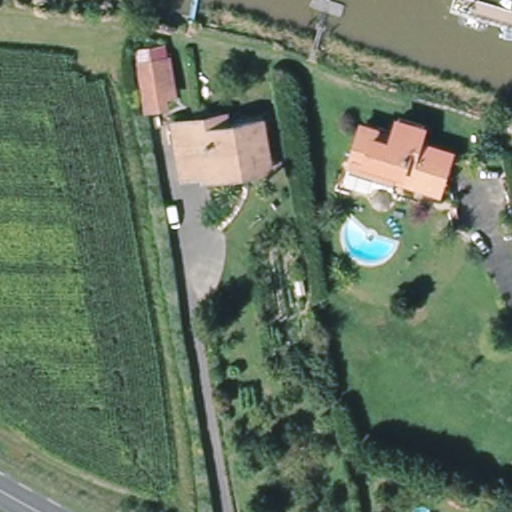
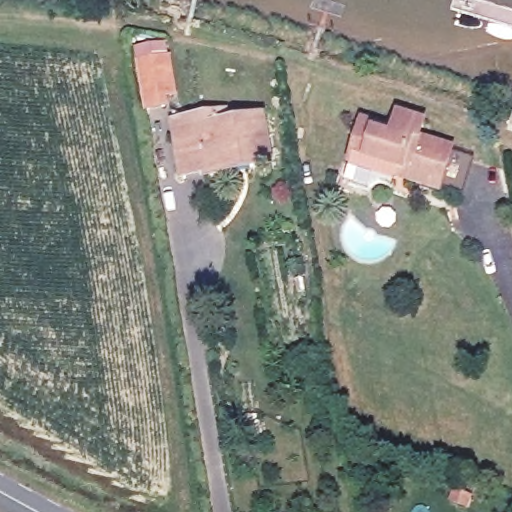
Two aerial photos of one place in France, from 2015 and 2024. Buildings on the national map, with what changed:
unchanged [(138,61),(162,58),(164,70),(166,97),(157,98),(159,109),(145,110),(140,73),(138,61)]
unchanged [(272,173),(207,184),(206,179),(183,182),(174,124),(200,120),(228,116),(230,128),(265,123),(272,173)]
unchanged [(438,189),(416,182),(395,174),(393,182),(345,165),(359,124),(389,134),(394,118),(405,121),(426,128),(420,144),(449,154),(438,189)]

